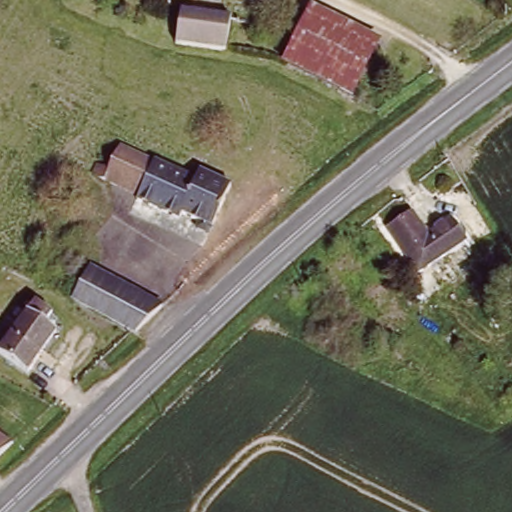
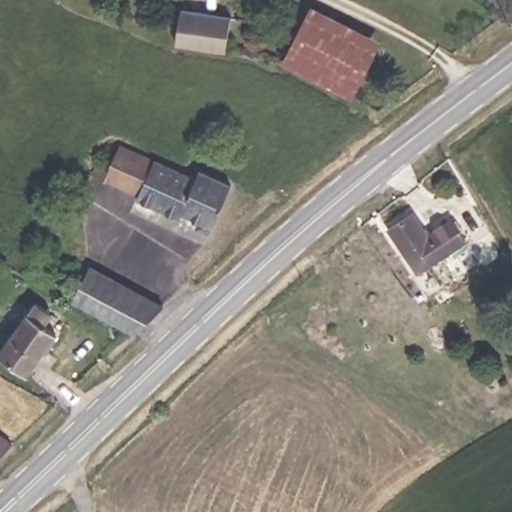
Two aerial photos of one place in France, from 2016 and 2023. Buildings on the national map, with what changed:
unchanged [(229,11),(222,45),(175,35),(180,2),(229,11)]
unchanged [(382,46),(354,100),(285,64),(313,10),(382,46)]
unchanged [(200,180),(204,170),(236,185),(214,235),(202,230),(204,222),(114,184),(112,188),(97,180),(102,175),(112,164),(117,166),(129,147),(200,180)]
unchanged [(408,226),(412,223),(429,244),(456,222),(472,242),(424,277),(395,236),(408,226)]
unchanged [(139,323),(77,295),(91,265),(167,296),(139,323)]
unchanged [(49,328),(20,365),(0,349),(0,334),(22,306),(49,328)]
unchanged [(6,430),(0,437),(0,426),(6,430)]
unchanged [(3,439),(15,445),(0,460),(0,437),(3,439)]

